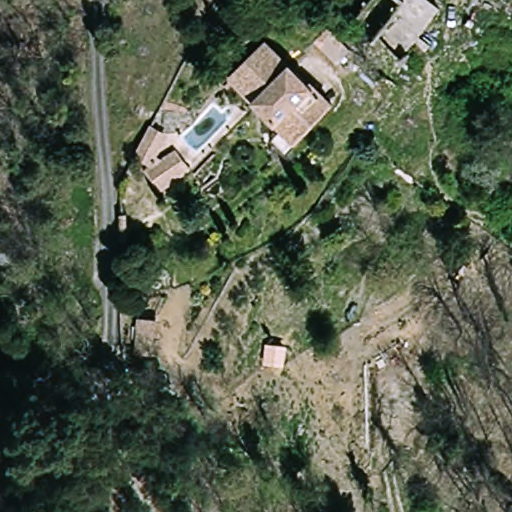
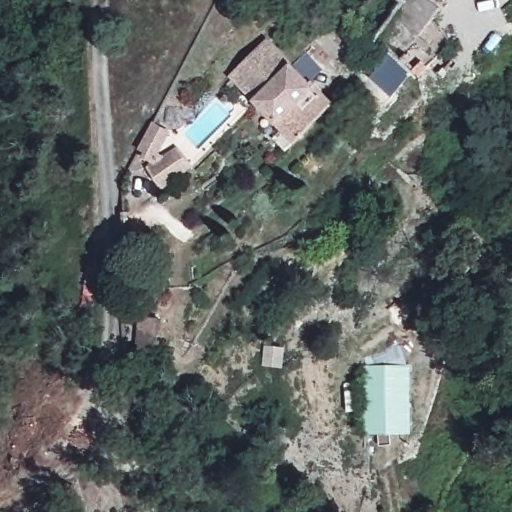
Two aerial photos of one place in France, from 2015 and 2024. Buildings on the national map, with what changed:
unchanged [(412,0),(438,20),(417,48),(421,51),(418,56),(388,30),(391,25),(404,10),(412,0)]
unchanged [(291,145),(284,138),(266,121),(276,108),(269,102),(239,71),(268,38),(299,68),(306,74),(332,98),(291,145)]
unchanged [(153,162),(134,152),(148,124),(169,135),(153,162)]
unchanged [(186,173),(161,190),(148,172),(173,155),(186,173)]
unchanged [(153,375),(130,375),(130,335),(153,335),(153,375)]
new [(367,366),(364,358),(399,342),(408,365),(411,365),(413,433),(363,435),(361,367),(367,366)]

